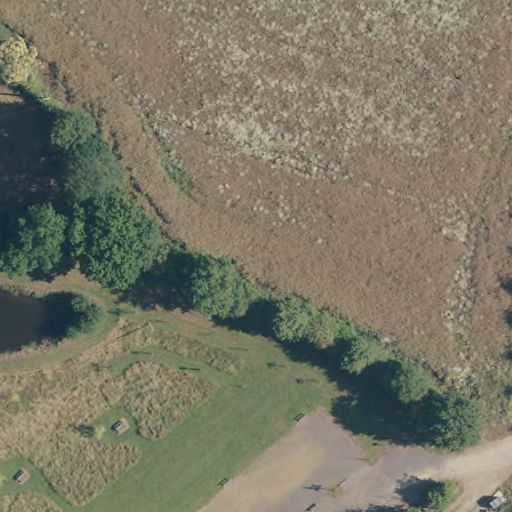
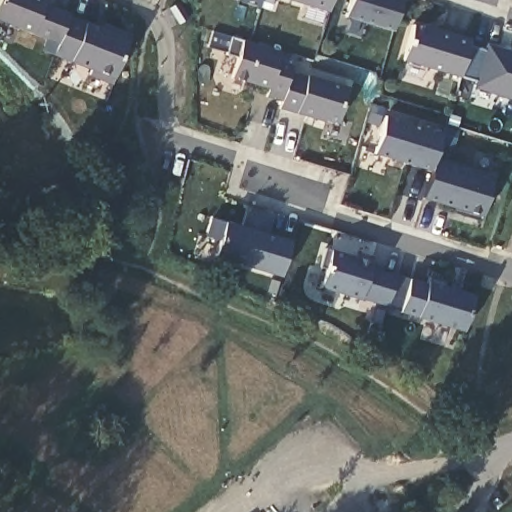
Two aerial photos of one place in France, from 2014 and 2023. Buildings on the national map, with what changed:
new [(44,4),(70,14),(100,27),(102,22),(130,34),(129,39),(113,80),(111,85),(88,76),(92,71),(70,63),(54,56),(57,45),(0,22),(0,0),(45,0),(44,4)]
new [(329,12),(287,0),(332,0),(329,12)]
new [(393,31),(344,16),(349,0),(402,0),(393,31)]
new [(421,27),(421,24),(471,40),(469,46),(484,51),(487,44),(512,51),(512,100),(473,88),(475,80),(460,76),(460,78),(402,60),(413,24),(421,27)]
new [(231,36),(243,40),(281,52),(279,61),(293,65),(290,74),(308,78),(309,75),(347,87),(337,124),(324,120),(323,122),(279,108),(282,102),(265,97),(268,89),(231,78),(238,59),(226,54),(231,36)]
new [(385,115),(442,132),(435,157),(492,176),(479,221),(452,213),(455,209),(422,199),(430,170),(373,154),(385,115)]
new [(211,218),(226,221),(243,226),(248,208),(273,215),(268,235),(290,241),(279,278),(213,258),(218,242),(205,237),(211,218)]
new [(325,248),(331,250),(371,262),(369,267),(426,285),(427,281),(473,295),(462,332),(318,289),(326,270),(318,267),(325,248)]

